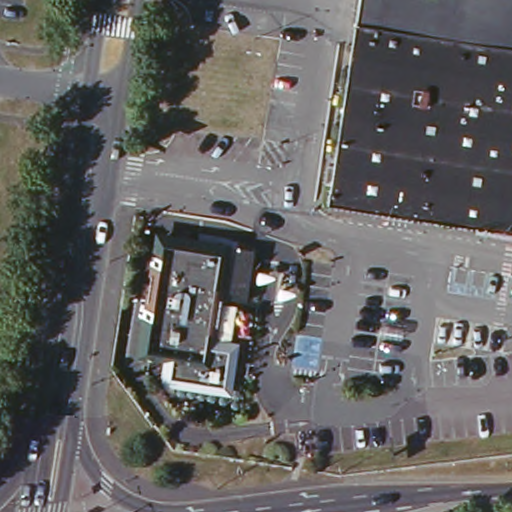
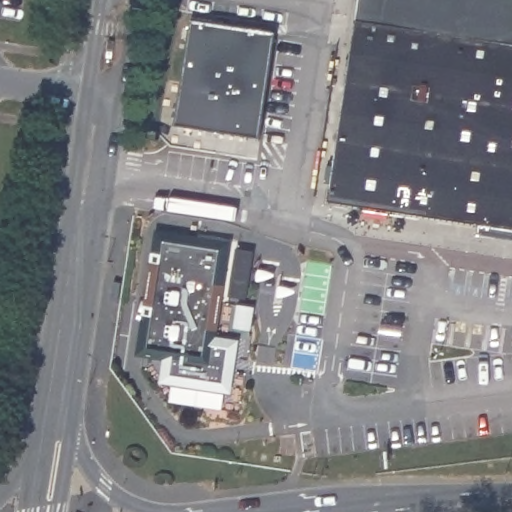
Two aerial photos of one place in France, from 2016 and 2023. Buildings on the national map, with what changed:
unchanged [(512,229),(325,202),(355,0),(512,0),(512,229)]
new [(276,34),(261,136),(176,124),(192,22),(276,34)]
unchanged [(228,335),(232,335),(225,380),(163,370),(167,348),(141,344),(156,244),(161,245),(163,227),(195,232),(196,225),(199,223),(204,226),(205,227),(204,233),(221,236),(218,253),(222,254),(216,292),(235,296),(228,335)]
unchanged [(252,242),(247,272),(228,270),(234,239),(252,242)]

